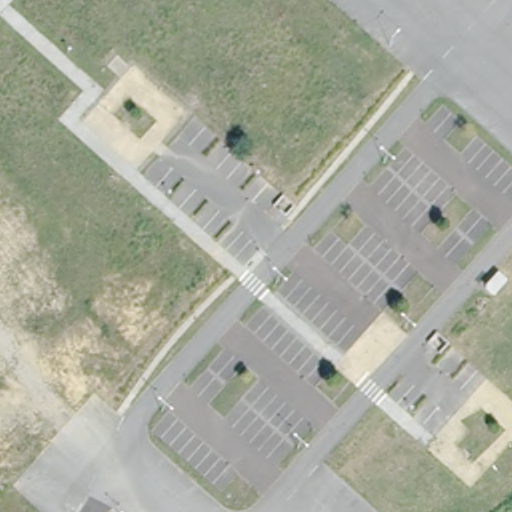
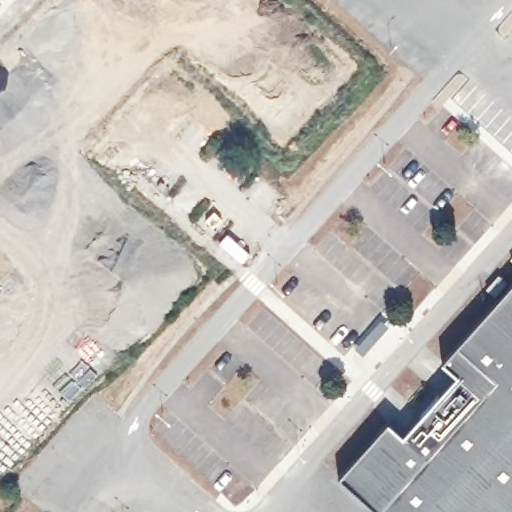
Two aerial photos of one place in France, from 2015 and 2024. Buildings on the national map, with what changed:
new [(496,300),(486,291),(504,270),(512,278),(512,512),(382,512),(338,473),(387,418),(401,432),(457,372),(442,358),(496,300)]

